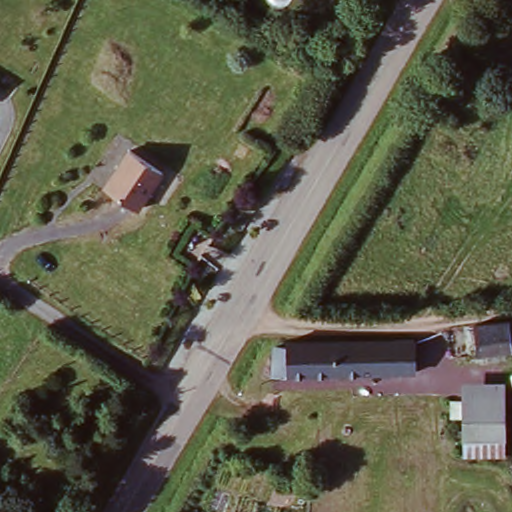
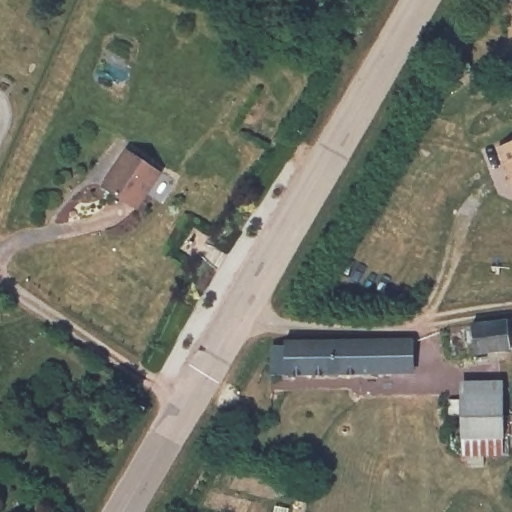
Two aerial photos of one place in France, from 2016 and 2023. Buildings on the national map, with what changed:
unchanged [(501,82),(512,59),(512,87),(501,82)]
new [(512,143),(512,178),(499,148),(512,143)]
unchanged [(161,171),(134,210),(103,187),(132,148),(161,171)]
unchanged [(512,322),(512,356),(463,361),(456,332),(512,322)]
unchanged [(275,357),(278,356),(279,347),(391,341),(411,340),(415,370),(393,372),(276,378),(275,357)]
unchanged [(508,380),(507,457),(462,459),(461,378),(508,380)]

